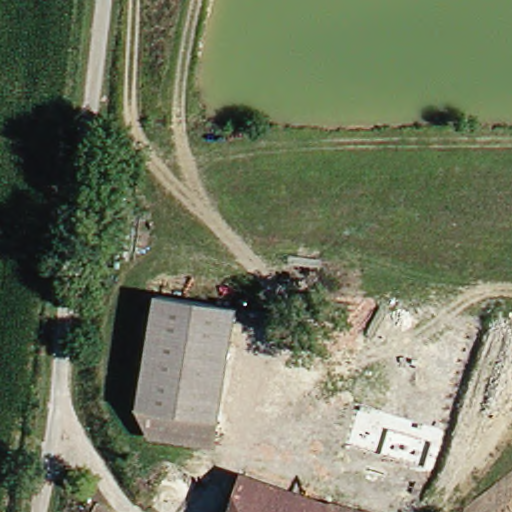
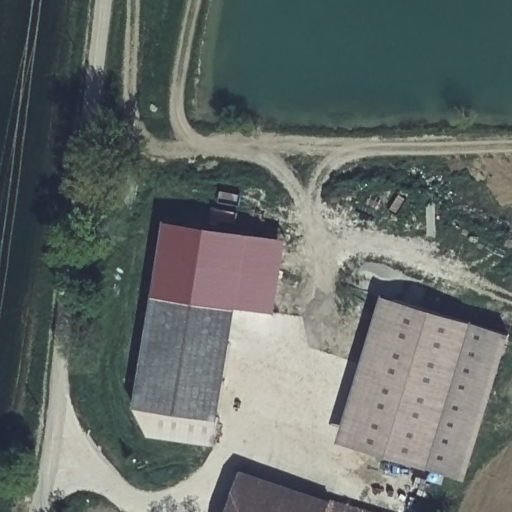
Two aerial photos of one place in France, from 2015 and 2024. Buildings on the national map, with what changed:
new [(277,312),(233,306),(153,294),(167,219),(290,239),(277,312)]
unchanged [(151,294),(233,306),(226,356),(217,418),(203,416),(135,406),(151,294)]
new [(465,482),(337,443),(383,295),(510,335),(465,482)]
unchanged [(203,416),(217,418),(213,445),(192,442),(131,433),(135,406),(203,416)]
unchanged [(333,512),(236,512),(252,469),(338,500),(333,512)]
unchanged [(338,500),(371,512),(333,512),(338,500)]

